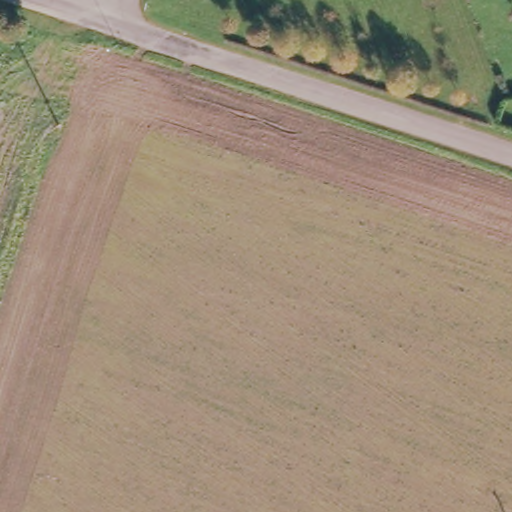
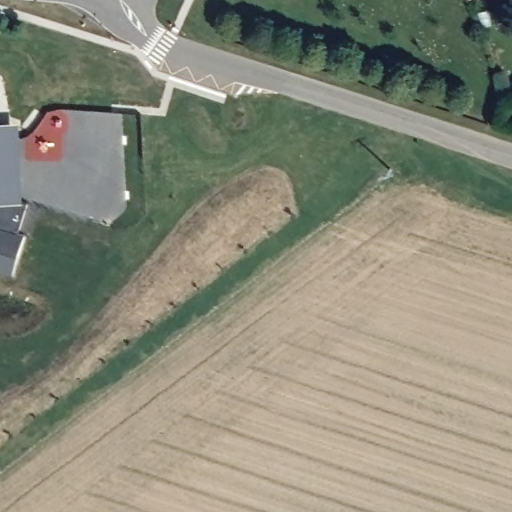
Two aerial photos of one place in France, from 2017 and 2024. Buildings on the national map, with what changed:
new [(15,126),(19,204),(0,205),(0,125),(15,126)]
new [(19,204),(26,207),(16,237),(22,239),(10,277),(0,274),(0,205),(19,204)]

